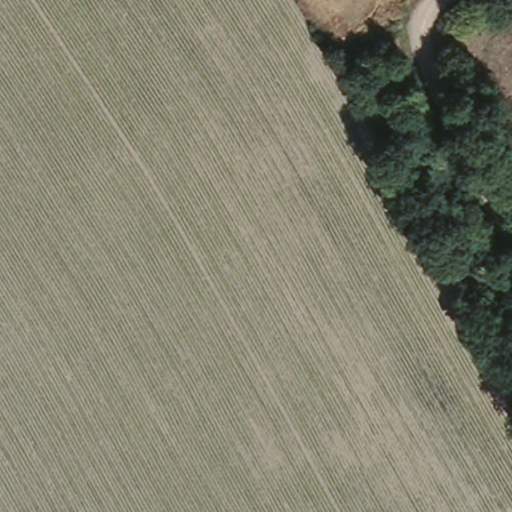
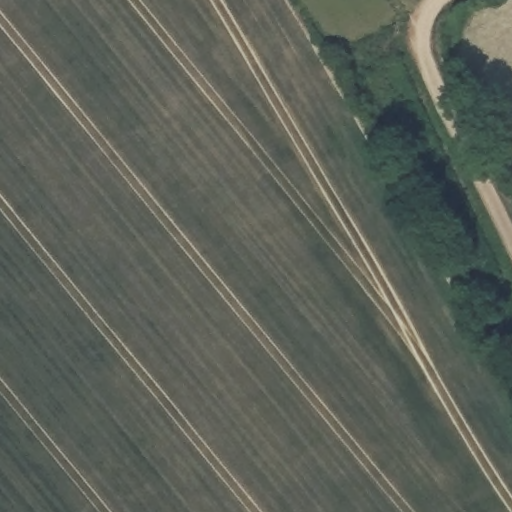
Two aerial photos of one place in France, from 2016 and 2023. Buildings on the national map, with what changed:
[]

